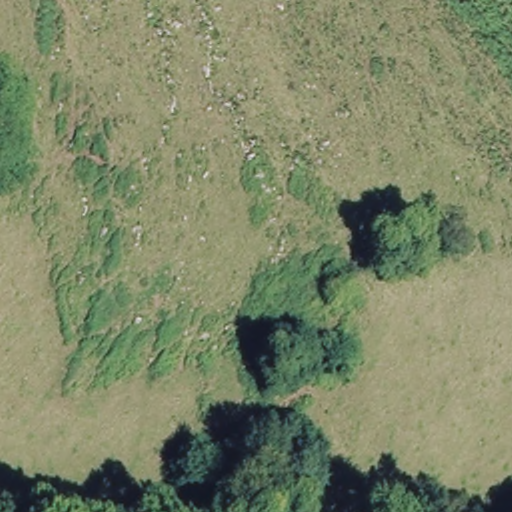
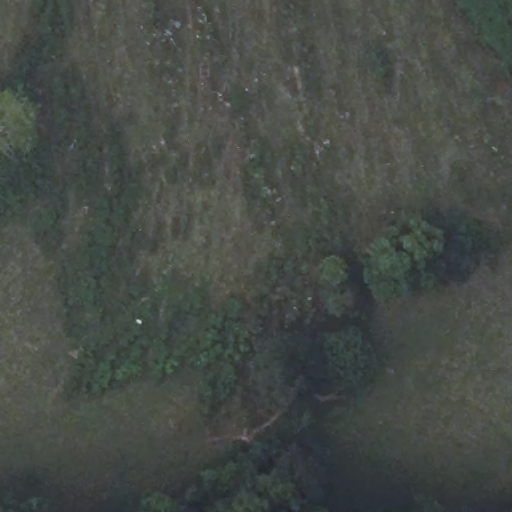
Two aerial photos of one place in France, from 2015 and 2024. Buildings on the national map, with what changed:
unchanged [(267,442),(289,458),(258,504),(235,491),(267,442)]

